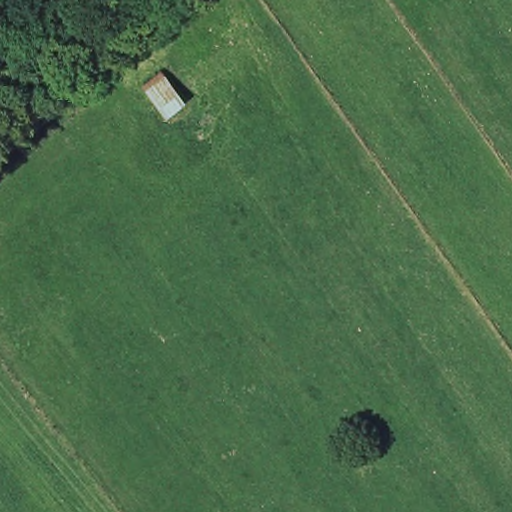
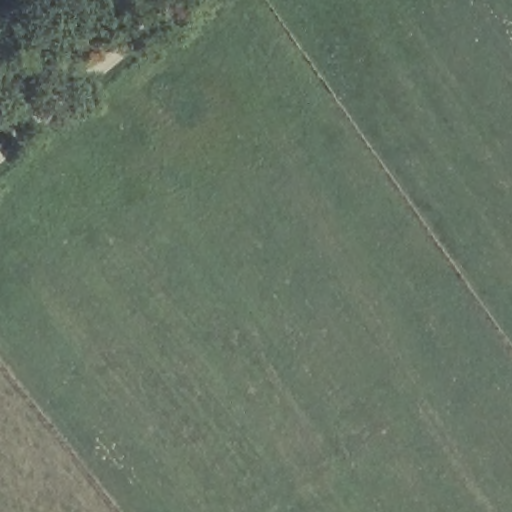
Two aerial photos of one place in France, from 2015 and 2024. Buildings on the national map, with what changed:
unchanged [(188,109),(169,126),(141,87),(162,76),(188,109)]

